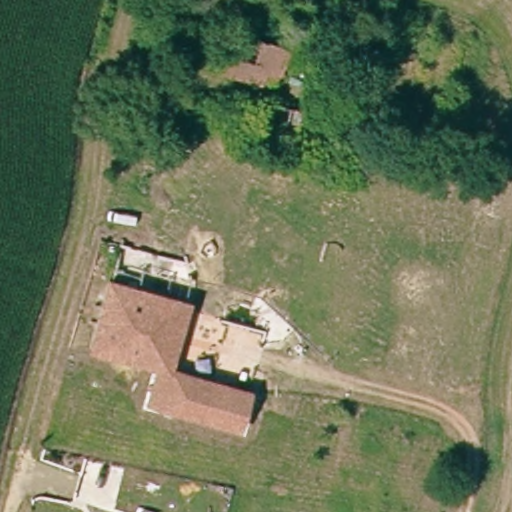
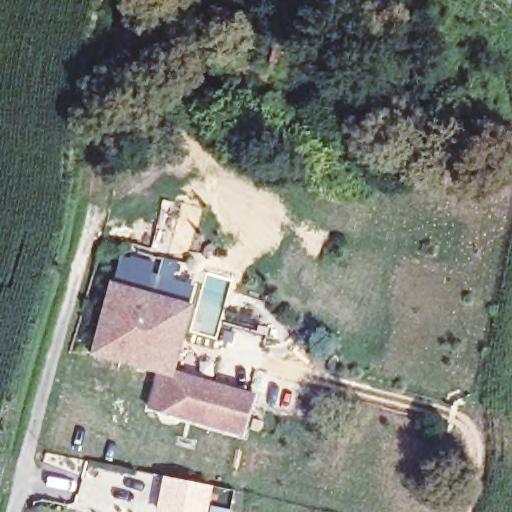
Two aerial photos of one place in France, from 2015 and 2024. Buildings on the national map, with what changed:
unchanged [(281,64),(260,58),(271,18),(277,0),(315,0),(313,5),(303,34),(292,30),(281,64)]
unchanged [(225,59),(240,63),(254,15),(271,18),(260,58),(281,64),(272,91),(221,76),(225,59)]
unchanged [(333,85),(337,72),(317,66),(320,55),(349,64),(346,75),(355,77),(352,91),(333,85)]
unchanged [(325,118),(318,141),(288,134),(266,128),(273,102),(293,107),(325,118)]
unchanged [(145,257),(149,246),(167,250),(163,260),(181,267),(187,285),(184,305),(104,286),(113,252),(145,257)]
unchanged [(189,311),(188,315),(172,375),(237,393),(244,369),(260,374),(244,434),(167,413),(147,408),(153,372),(88,353),(94,324),(84,320),(87,305),(99,308),(104,286),(184,305),(189,311)]
new [(156,511),(163,476),(213,485),(207,512),(158,512),(156,511)]

